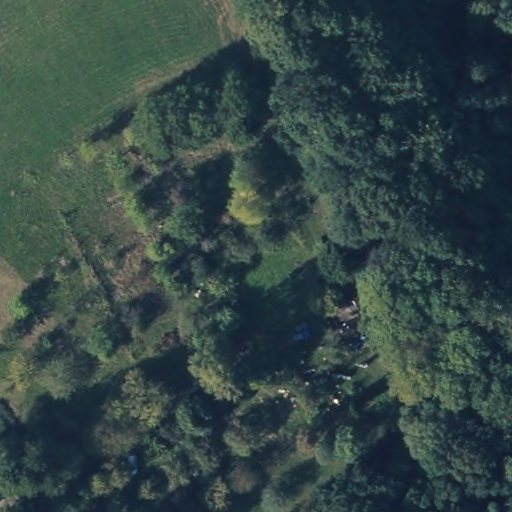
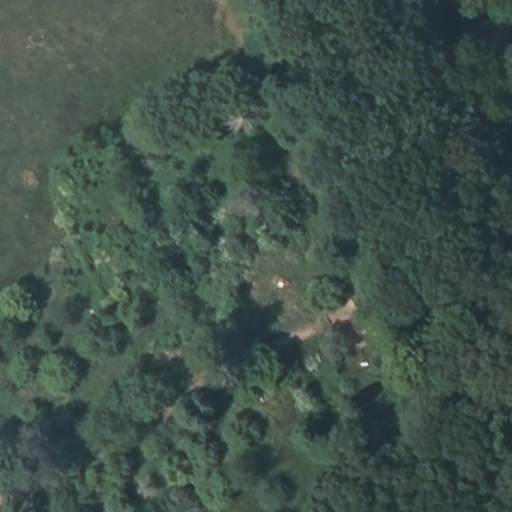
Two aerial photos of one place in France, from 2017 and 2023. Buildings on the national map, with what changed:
unchanged [(364,314),(356,298),(368,291),(376,307),(381,305),(387,315),(364,327),(358,317),(364,314)]

